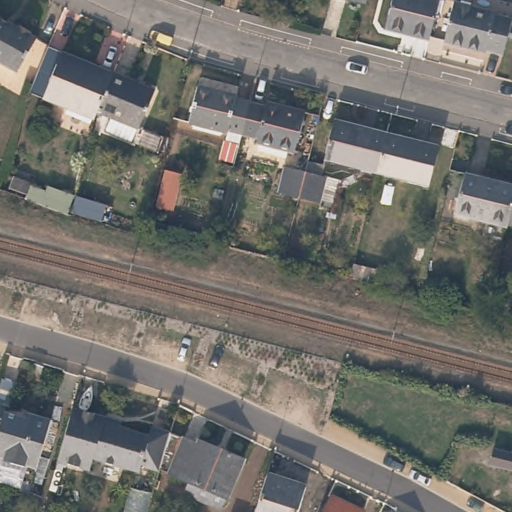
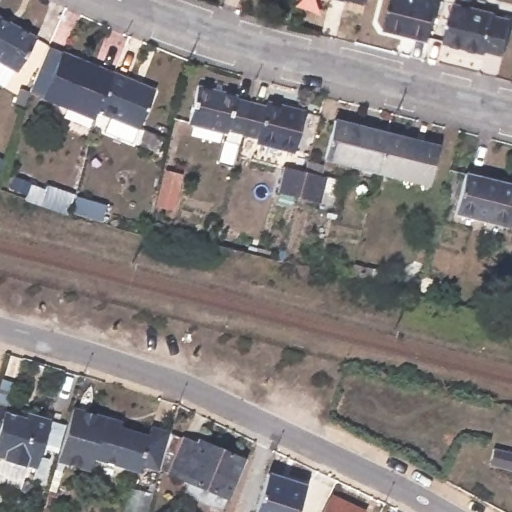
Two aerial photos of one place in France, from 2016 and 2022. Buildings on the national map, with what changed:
unchanged [(357,2),(349,0),(357,0),(357,2)]
unchanged [(425,42),(404,37),(403,39),(382,33),(389,0),(436,0),(425,42)]
unchanged [(496,14),(512,19),(512,21),(505,54),(488,50),(487,52),(445,41),(456,2),(496,11),(496,14)]
unchanged [(42,37),(23,71),(0,58),(0,14),(42,37)]
unchanged [(98,111),(95,118),(42,97),(62,51),(115,72),(98,111)]
unchanged [(156,89),(140,129),(139,128),(133,142),(106,131),(112,117),(98,111),(115,72),(156,89)]
unchanged [(242,133),(229,130),(229,133),(189,123),(199,84),(237,93),(237,97),(251,102),(242,133)]
unchanged [(266,106),(267,101),(306,111),(295,151),(257,142),(258,138),(242,133),(251,102),(266,106)]
unchanged [(377,172),(325,159),(335,119),(387,132),(377,172)]
unchanged [(387,132),(441,146),(430,185),(377,172),(387,132)]
unchanged [(285,166),(306,171),(308,160),(324,164),(321,174),(326,176),(319,202),(299,197),(278,192),(285,166)]
unchanged [(159,205),(164,180),(167,170),(182,173),(180,184),(174,209),(159,205)]
unchanged [(508,226),(455,213),(466,172),(512,184),(512,214),(510,224),(508,226)]
unchanged [(34,184),(33,188),(47,192),(49,186),(101,203),(95,223),(25,200),(27,195),(9,188),(14,175),(34,184)]
unchanged [(512,225),(510,224),(512,214),(512,225)]
unchanged [(385,271),(382,285),(352,277),(355,263),(385,271)]
unchanged [(8,409),(6,415),(27,420),(29,415),(52,422),(38,471),(26,468),(25,470),(5,464),(5,461),(0,460),(0,407),(8,409)]
unchanged [(142,467),(141,474),(93,460),(89,472),(58,462),(74,409),(105,419),(122,424),(120,430),(150,439),(152,430),(167,434),(171,435),(161,470),(160,472),(142,467)]
unchanged [(171,435),(197,447),(199,442),(245,461),(230,499),(228,498),(223,510),(185,495),(190,482),(161,470),(171,435)]
unchanged [(497,447),(512,451),(512,469),(493,463),(497,447)]
unchanged [(302,512),(260,512),(271,480),(308,492),(302,512)]
unchanged [(363,512),(324,512),(331,495),(363,511),(363,512)]

